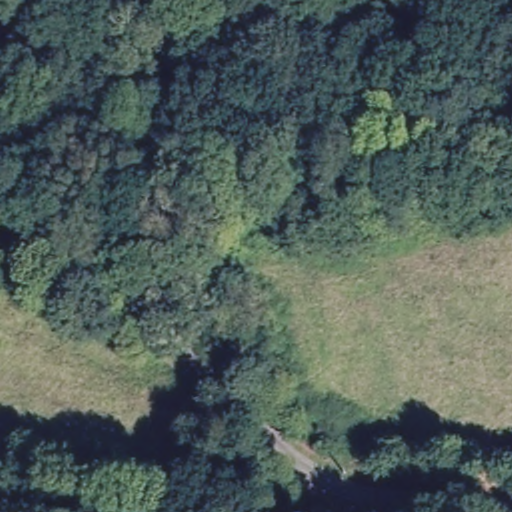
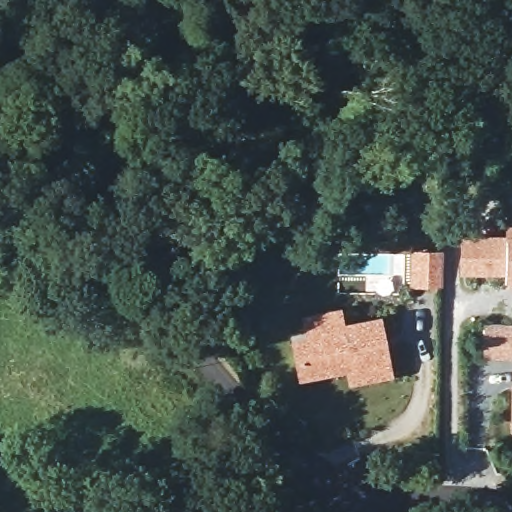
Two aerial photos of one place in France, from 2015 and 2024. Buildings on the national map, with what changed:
new [(505,277),(459,278),(461,237),(508,235),(508,218),(512,218),(512,289),(505,288),(505,277)]
new [(415,253),(444,254),(443,283),(414,282),(415,253)]
new [(348,385),(345,371),(298,380),(290,335),(305,332),(302,315),(342,307),(344,321),(382,315),(394,376),(348,385)]
new [(485,322),(512,322),(512,359),(483,358),(485,322)]
new [(511,383),(512,383),(512,433),(510,433),(511,383)]

